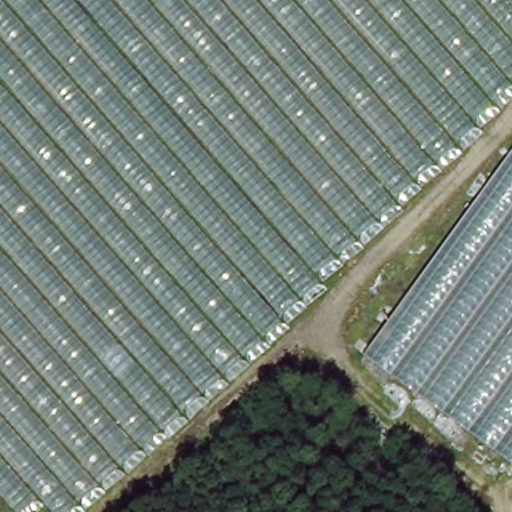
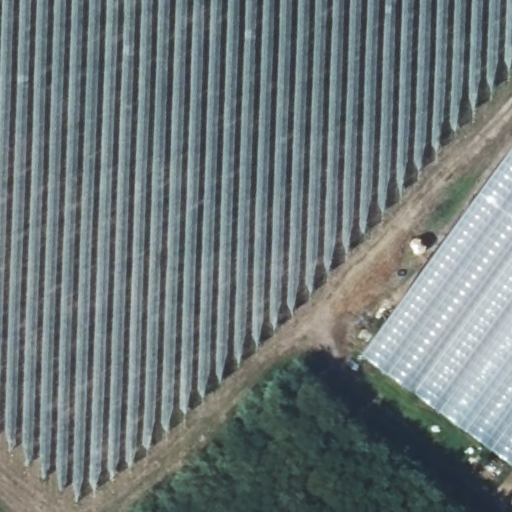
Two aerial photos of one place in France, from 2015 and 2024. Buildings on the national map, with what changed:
demolished [(37,510),(34,512),(16,512),(0,494),(0,0),(512,0),(512,77),(80,512),(39,512),(37,510)]
unchanged [(512,152),(512,460),(365,356),(512,152)]

